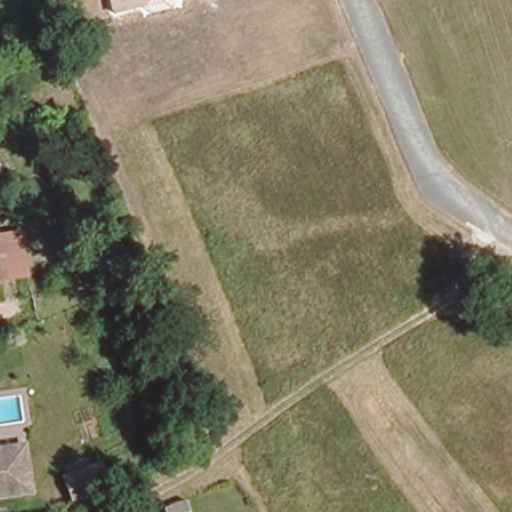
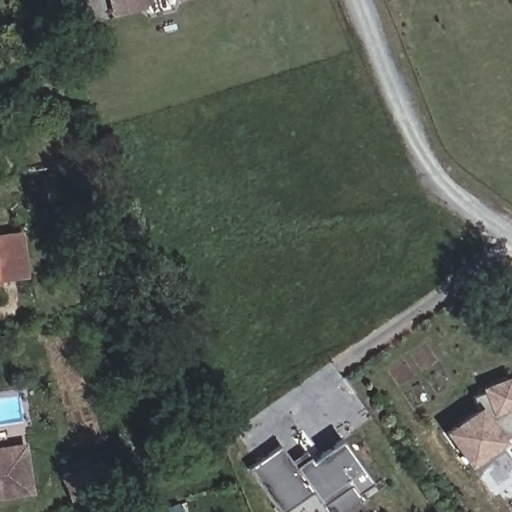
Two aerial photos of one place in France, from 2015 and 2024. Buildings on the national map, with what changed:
unchanged [(2,288),(0,288),(0,274),(2,288)]
new [(468,467),(442,433),(477,407),(474,396),(482,392),(480,387),(508,376),(511,382),(512,382),(512,433),(503,440),(468,467)]
new [(370,483),(359,491),(364,499),(346,512),(327,512),(312,492),(285,512),(278,512),(248,469),(279,446),(290,460),(303,451),(310,461),(339,441),(370,483)]
unchanged [(27,446),(33,488),(0,493),(0,450),(27,446)]
unchanged [(66,503),(57,480),(95,465),(104,488),(105,493),(107,497),(79,507),(69,511),(66,503)]

